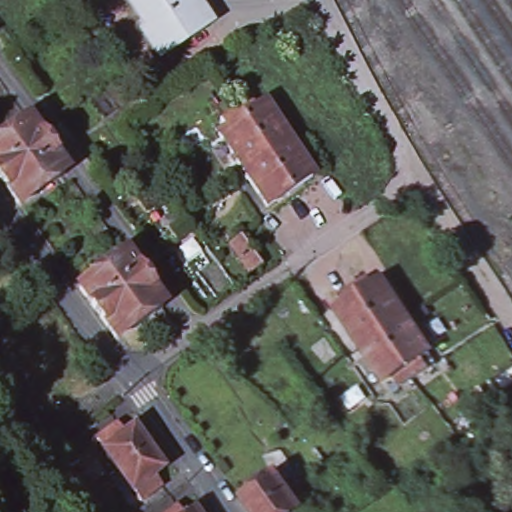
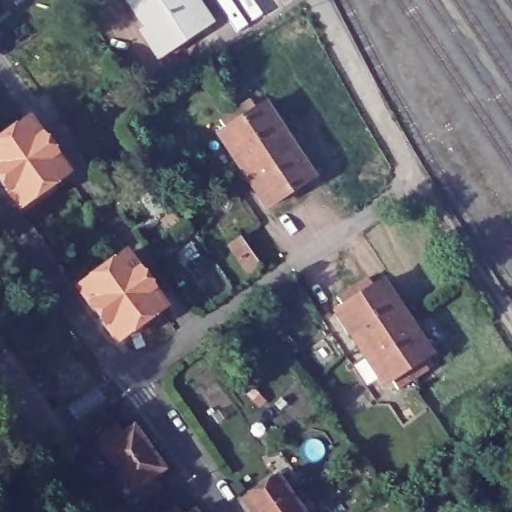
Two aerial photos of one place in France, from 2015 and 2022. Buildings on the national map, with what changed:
unchanged [(102,29),(89,9),(103,0),(108,0),(119,17),(102,29)]
unchanged [(162,51),(145,25),(150,23),(135,0),(202,0),(212,16),(162,51)]
unchanged [(149,61),(130,74),(108,40),(126,28),(149,61)]
unchanged [(312,179),(268,208),(218,135),(226,130),(220,120),(249,101),(255,110),(264,105),(312,179)]
unchanged [(63,172),(17,204),(0,180),(0,137),(25,119),(63,172)]
unchanged [(189,232),(172,243),(164,232),(180,220),(189,232)]
unchanged [(160,305),(115,339),(76,285),(122,253),(160,305)]
unchanged [(395,384),(390,376),(382,382),(332,309),(339,305),(334,297),(364,277),(370,285),(377,279),(427,352),(420,357),(425,364),(395,384)]
unchanged [(6,394),(15,407),(22,418),(30,429),(31,431),(39,441),(47,453),(24,469),(15,457),(9,447),(7,446),(0,434),(0,386),(6,394)]
unchanged [(144,504),(136,493),(135,494),(105,454),(107,452),(100,442),(120,427),(127,438),(136,432),(165,472),(157,478),(165,489),(144,504)]
unchanged [(307,512),(259,512),(249,498),(282,475),(307,512)]
unchanged [(175,506),(179,512),(166,512),(175,506)]
unchanged [(190,509),(192,512),(187,512),(190,509)]

